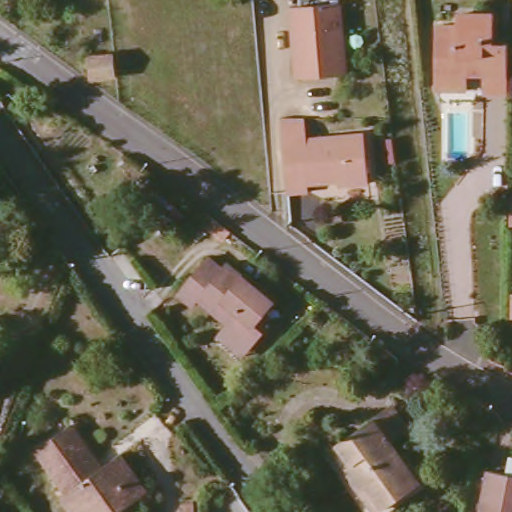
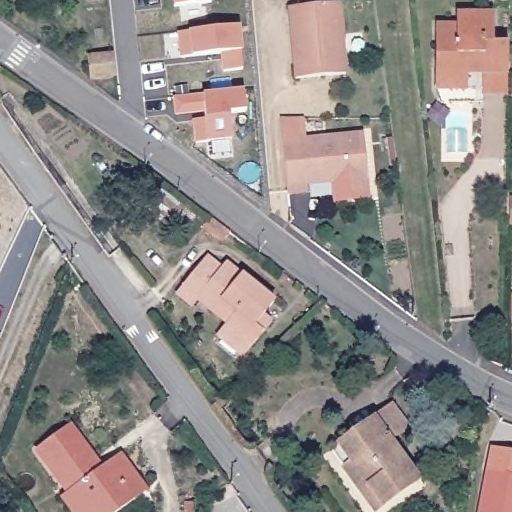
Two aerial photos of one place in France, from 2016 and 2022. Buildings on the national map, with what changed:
new [(174,7),(173,0),(212,0),(212,4),(174,7)]
unchanged [(350,74),(300,77),(298,60),(302,60),(300,30),(294,30),(292,6),(341,2),(350,74)]
unchanged [(485,92),(485,62),(480,62),(480,70),(472,70),(472,89),(440,89),(440,25),(460,25),(460,13),(497,14),(497,39),(512,40),(512,62),(511,93),(485,92)]
new [(242,51),(241,70),(222,71),(220,54),(180,59),(177,34),(240,28),(242,51)]
unchanged [(89,81),(87,55),(109,54),(111,80),(89,81)]
new [(192,121),(205,120),(205,113),(175,116),(173,99),(201,96),(244,92),(245,111),(230,114),(230,141),(208,144),(194,145),(192,121)]
unchanged [(284,121),(304,120),(305,142),(367,136),(371,180),(310,185),(310,195),(290,196),(284,121)]
unchanged [(222,320),(197,297),(194,301),(180,288),(211,256),(223,268),(229,262),(275,303),(262,317),(270,325),(245,352),(216,326),(222,320)]
unchanged [(405,465),(418,481),(381,510),(347,465),(353,459),(342,444),(354,433),(377,416),(394,402),(410,423),(393,437),(410,457),(405,465)]
unchanged [(70,494),(65,493),(33,452),(64,427),(97,470),(114,457),(142,492),(118,512),(84,512),(70,494)]
unchanged [(512,512),(486,512),(495,470),(512,473),(512,512)]

